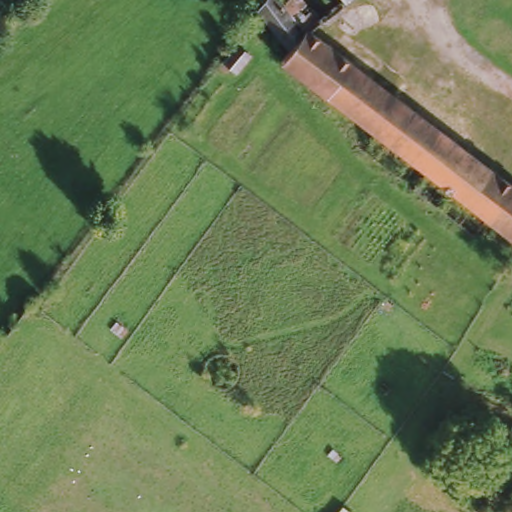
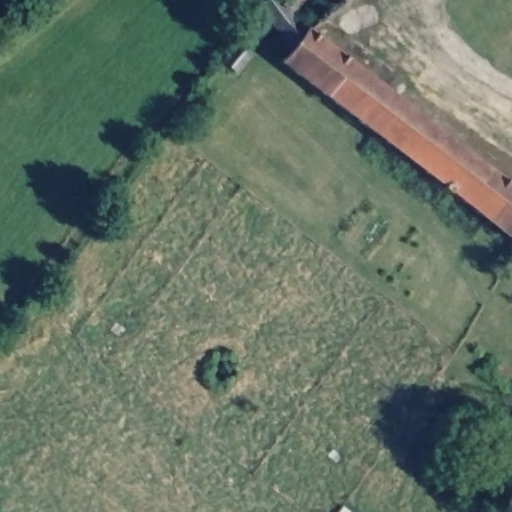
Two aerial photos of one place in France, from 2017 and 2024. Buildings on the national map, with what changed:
unchanged [(383,85),(512,184),(512,229),(509,233),(270,50),(280,39),(249,0),(280,0),(295,18),(312,5),(397,69),(383,85)]
unchanged [(237,40),(248,50),(235,66),(223,56),(237,40)]

